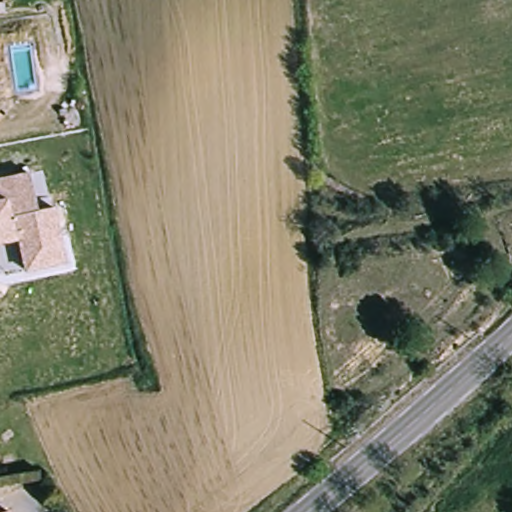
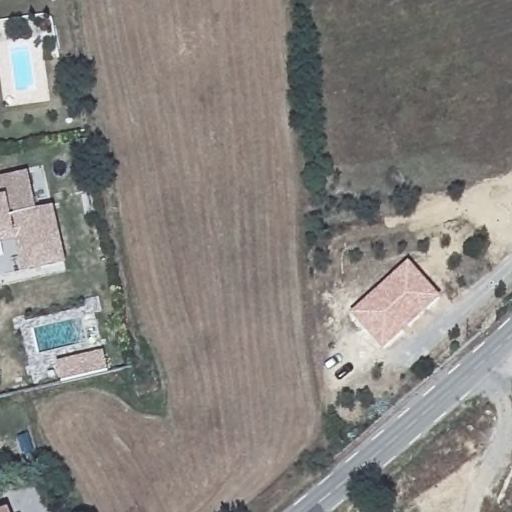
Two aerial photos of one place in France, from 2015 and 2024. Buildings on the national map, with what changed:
unchanged [(37,211),(55,207),(65,263),(25,271),(19,241),(0,244),(0,178),(28,172),(37,211)]
new [(385,352),(351,315),(409,263),(442,299),(385,352)]

